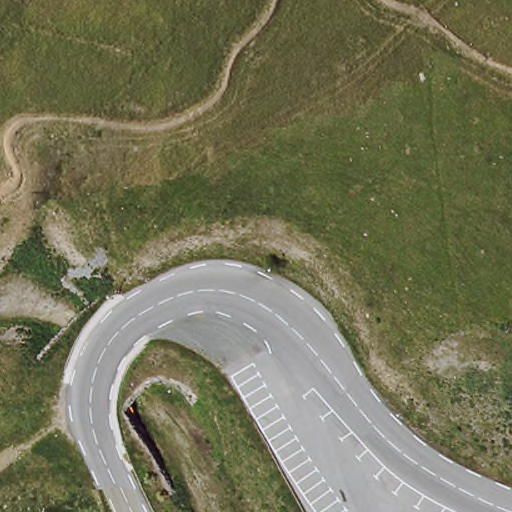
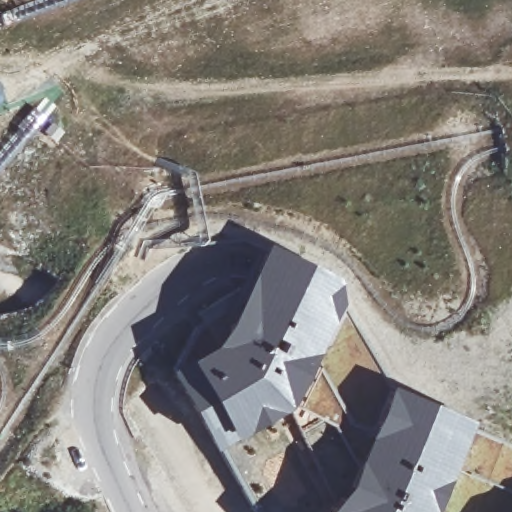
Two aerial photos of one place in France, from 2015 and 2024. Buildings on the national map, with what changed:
new [(173,363),(193,327),(201,320),(197,313),(240,287),(241,289),(266,246),(273,249),(275,247),(333,276),(340,282),(325,294),(333,316),(332,323),(289,405),(280,412),(214,450),(165,370),(173,363)]
new [(390,385),(473,421),(437,512),(322,512),(345,484),(390,385)]

